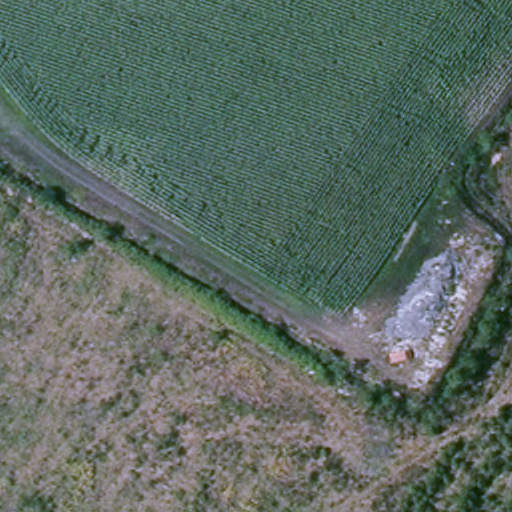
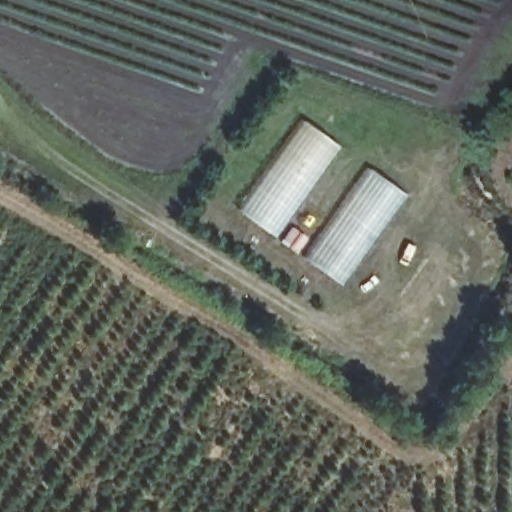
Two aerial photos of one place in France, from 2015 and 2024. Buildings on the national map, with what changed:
new [(277,237),(238,210),(302,120),(342,148),(277,237)]
new [(344,287),(305,260),(368,169),(407,196),(344,287)]

